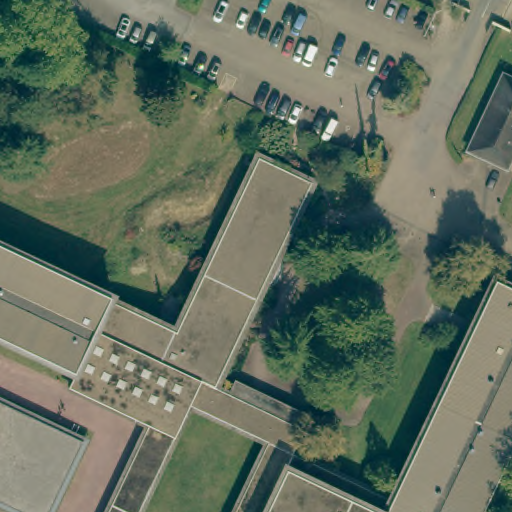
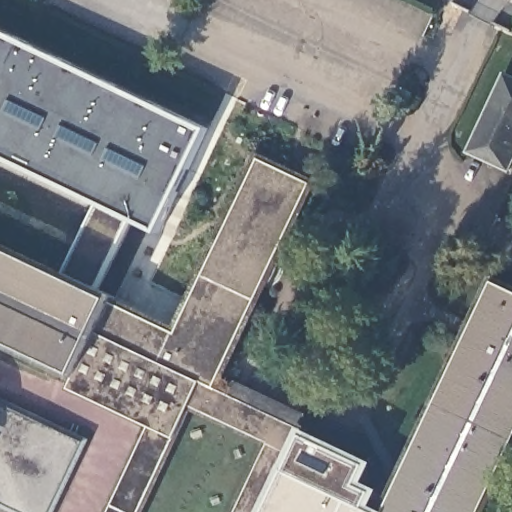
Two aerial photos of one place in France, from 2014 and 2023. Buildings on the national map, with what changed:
new [(204,130),(157,230),(130,218),(96,287),(64,272),(97,202),(0,155),(0,33),(204,130)]
unchanged [(512,161),(506,174),(491,167),(493,162),(469,150),(506,79),(512,82),(512,161)]
unchanged [(53,394),(61,378),(0,349),(0,241),(116,297),(114,299),(179,330),(264,157),(322,186),(226,391),(311,435),(297,463),(390,509),(499,282),(512,288),(512,470),(492,512),(238,512),(268,450),(194,413),(146,512),(113,512),(148,441),(53,394)]
new [(87,440),(53,512),(14,512),(0,505),(0,397),(87,440)]
demolished [(0,512),(0,415),(82,457),(55,512),(0,512)]

